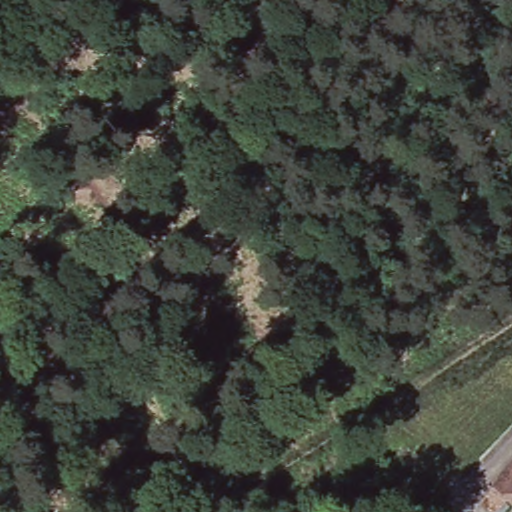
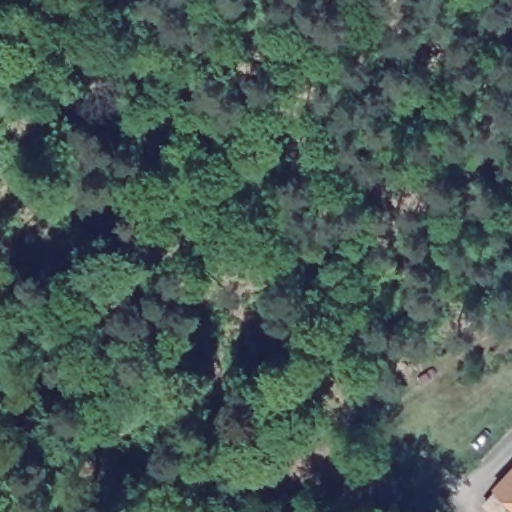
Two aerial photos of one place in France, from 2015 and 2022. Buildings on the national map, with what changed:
unchanged [(512,465),(512,509),(490,488),(512,465)]

